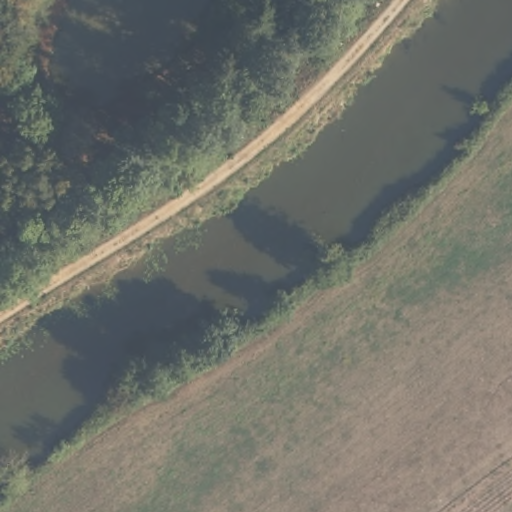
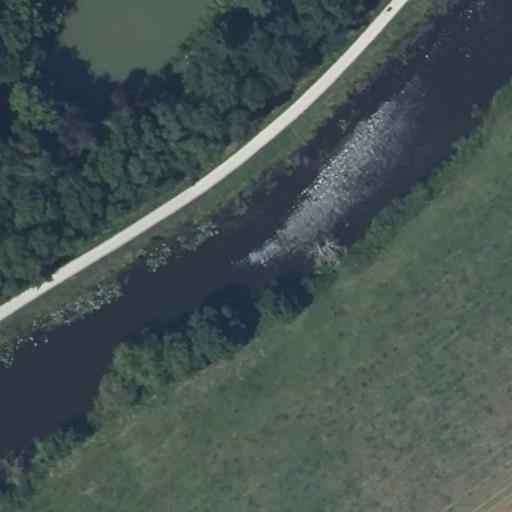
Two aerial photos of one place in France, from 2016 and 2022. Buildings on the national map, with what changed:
[]

